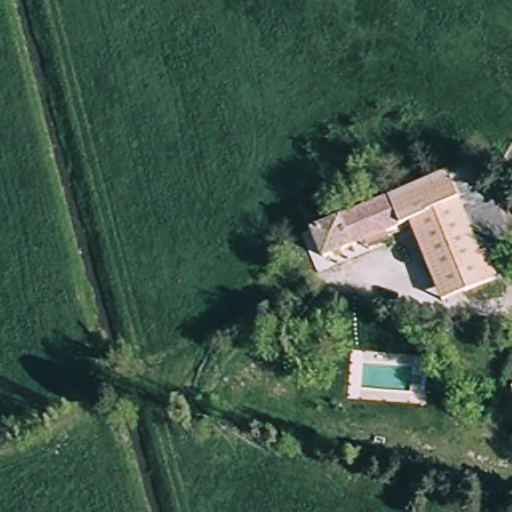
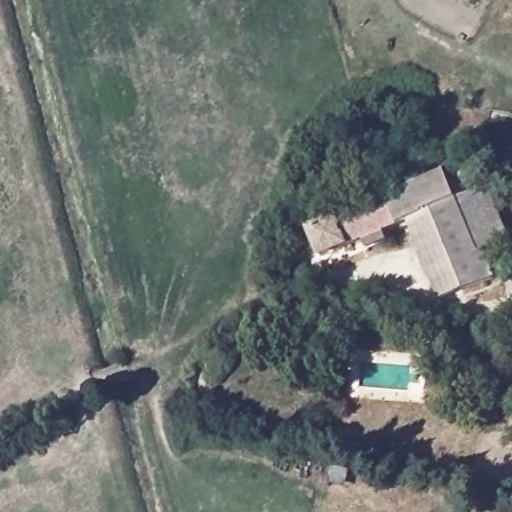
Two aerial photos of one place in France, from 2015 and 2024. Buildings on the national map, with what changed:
unchanged [(478,154),(511,232),(480,245),(448,167),(478,154)]
unchanged [(448,167),(480,245),(484,244),(496,272),(441,293),(409,216),(319,252),(309,225),(448,167)]

